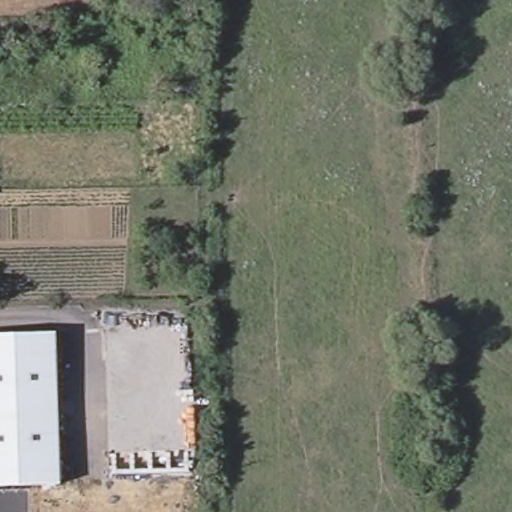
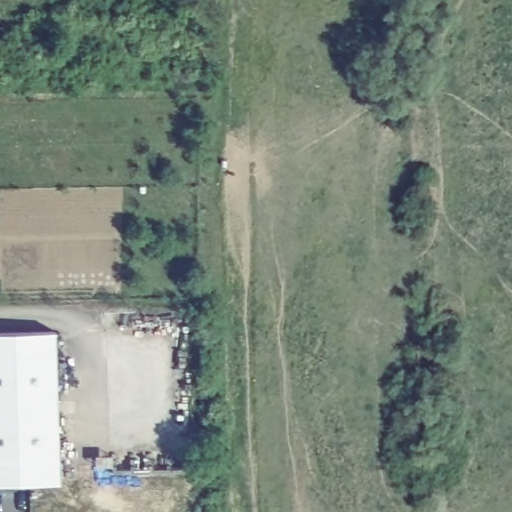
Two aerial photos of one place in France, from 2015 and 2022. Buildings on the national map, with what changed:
unchanged [(58,337),(58,377),(0,377),(0,338),(58,337)]
unchanged [(58,377),(62,486),(0,488),(0,377),(58,377)]

